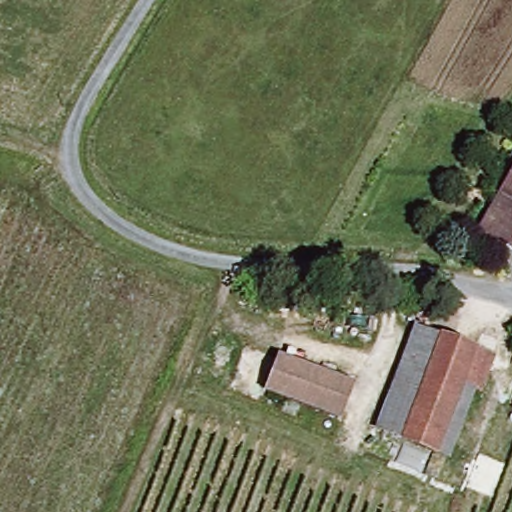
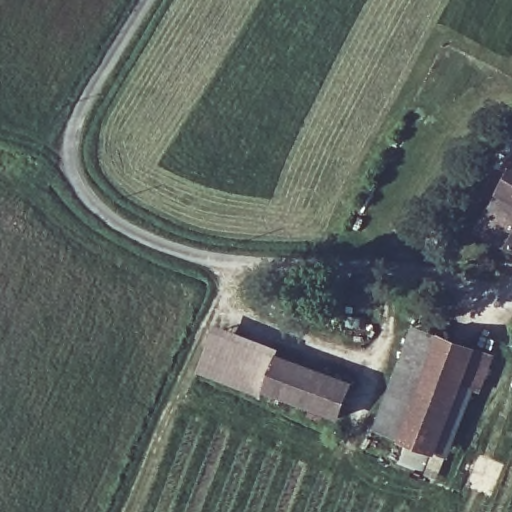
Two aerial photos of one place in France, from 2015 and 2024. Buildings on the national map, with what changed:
unchanged [(481,225),(512,168),(512,242),(504,238),(481,225)]
new [(282,348),(279,356),(268,386),(261,398),(198,373),(216,323),(282,348)]
unchanged [(442,341),(402,441),(379,431),(419,332),(442,341)]
unchanged [(442,341),(484,358),(472,387),(463,384),(434,454),(402,441),(442,341)]
unchanged [(279,356),(352,386),(340,415),(268,386),(279,356)]

